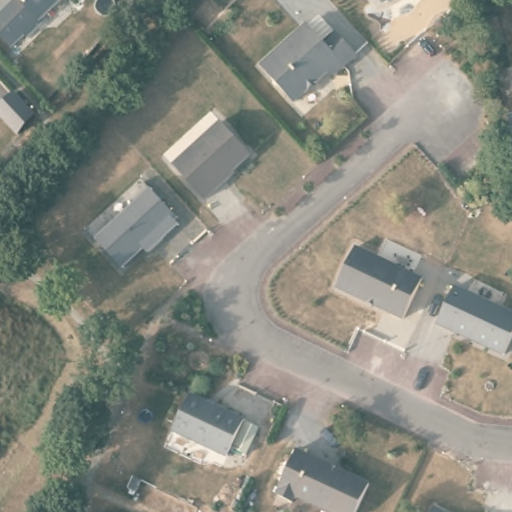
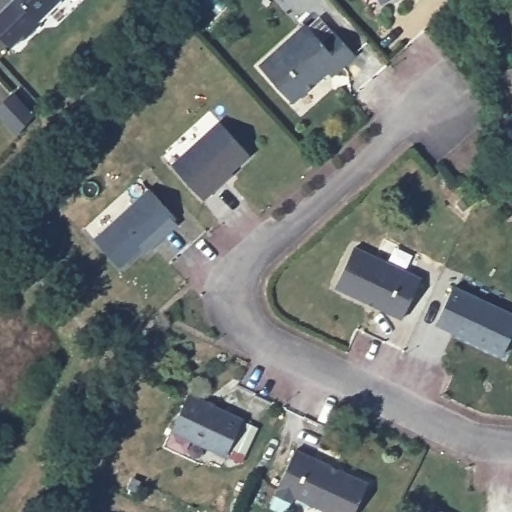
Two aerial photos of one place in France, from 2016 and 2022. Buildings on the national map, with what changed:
unchanged [(2,11),(13,0),(62,0),(39,22),(42,24),(26,39),(14,50),(0,34),(0,12),(2,11)]
unchanged [(375,0),(376,0),(376,1),(375,0)]
unchanged [(487,19),(504,15),(510,42),(493,45),(487,19)]
unchanged [(322,43),(336,32),(354,55),(332,76),(326,71),(291,102),(259,66),(306,23),(322,43)]
unchanged [(501,74),(512,71),(512,112),(511,112),(501,74)]
unchanged [(36,115),(18,132),(0,114),(0,104),(14,91),(36,115)]
unchanged [(512,112),(512,118),(511,112),(512,112)]
unchanged [(223,181),(225,182),(200,206),(169,172),(215,127),(245,159),(223,181)]
unchanged [(163,216),(168,223),(150,239),(145,234),(109,270),(82,242),(139,187),(165,214),(163,216)]
unchanged [(397,316),(327,283),(347,244),(415,276),(397,316)]
unchanged [(495,357),(427,326),(446,288),(512,320),(495,357)]
unchanged [(222,457),(168,431),(184,395),(237,419),(222,457)]
unchanged [(350,512),(336,512),(290,491),(287,497),(274,491),(277,485),(275,482),(292,447),(363,482),(350,512)]

